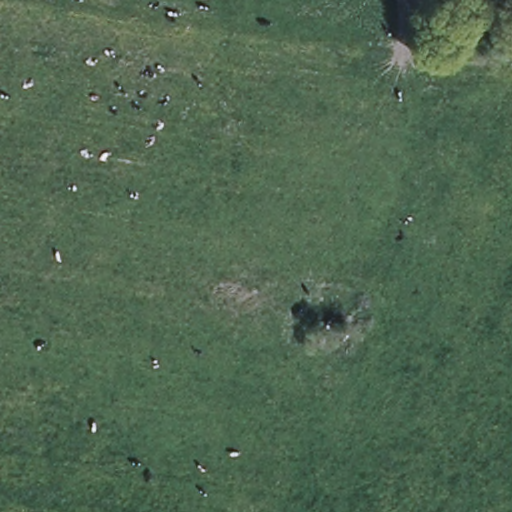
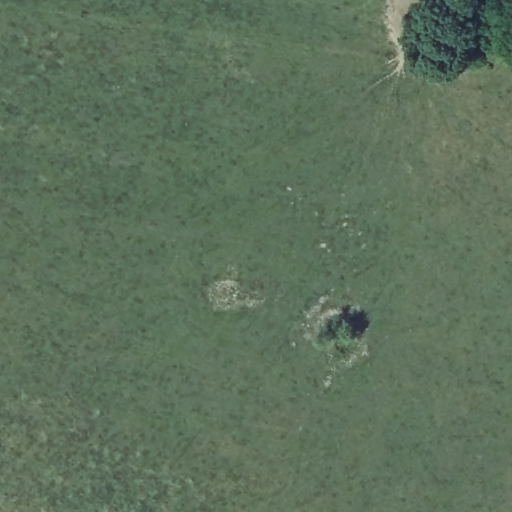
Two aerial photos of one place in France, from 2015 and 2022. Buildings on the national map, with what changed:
[]

